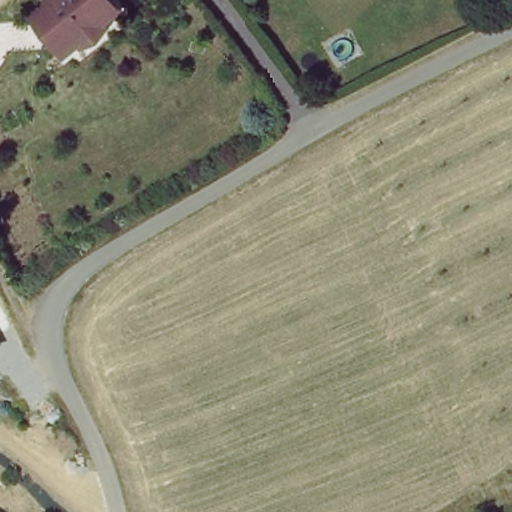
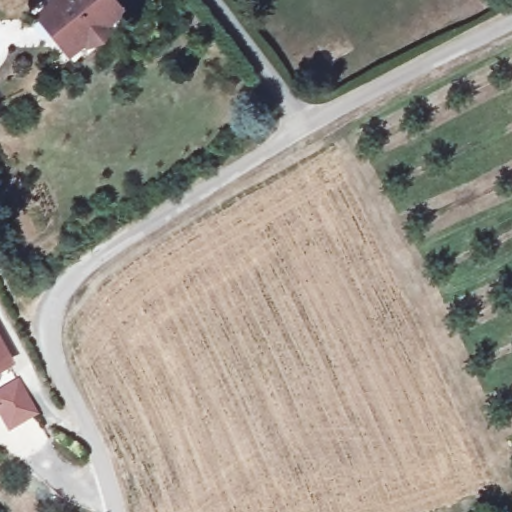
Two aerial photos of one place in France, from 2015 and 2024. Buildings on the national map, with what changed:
unchanged [(107,8),(93,19),(97,23),(96,31),(87,38),(80,37),(77,33),(63,45),(37,13),(50,1),(50,0),(100,0),(107,8)]
new [(0,368),(0,338),(12,361),(0,368)]
new [(0,387),(18,378),(37,412),(7,429),(0,416),(0,387)]

